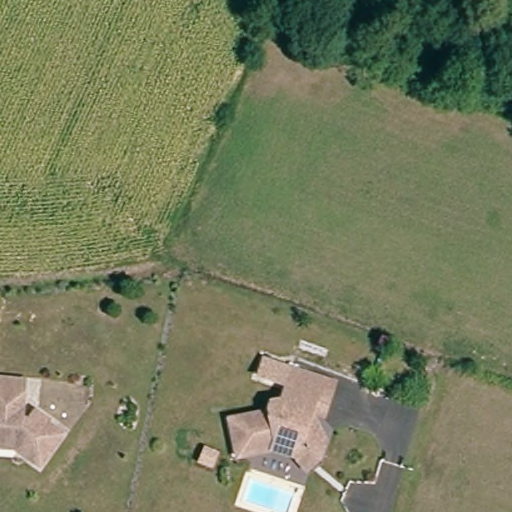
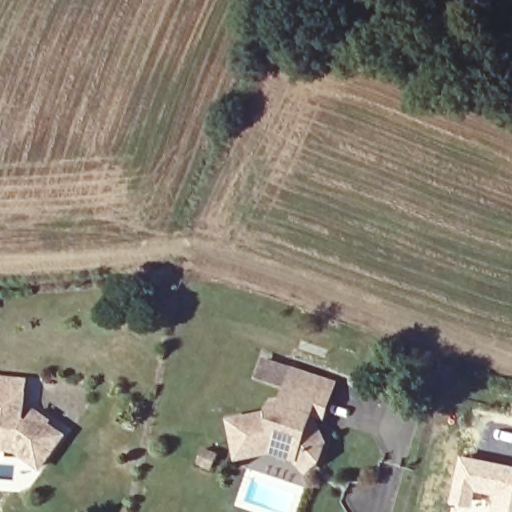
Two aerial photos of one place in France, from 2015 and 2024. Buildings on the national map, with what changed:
unchanged [(319,421),(317,428),(330,453),(325,465),(315,461),(313,466),(306,470),(302,460),(288,455),(251,471),(235,437),(272,420),(275,412),(284,408),(290,391),(263,381),(269,365),(298,376),(339,391),(334,405),(326,424),(319,421)]
unchanged [(23,375),(22,412),(36,416),(43,408),(53,417),(48,422),(63,439),(34,464),(19,445),(0,448),(0,375),(23,375)]
new [(448,503),(459,455),(512,466),(512,512),(449,512),(451,503),(448,503)]
unchanged [(218,476),(205,474),(207,460),(220,462),(218,476)]

